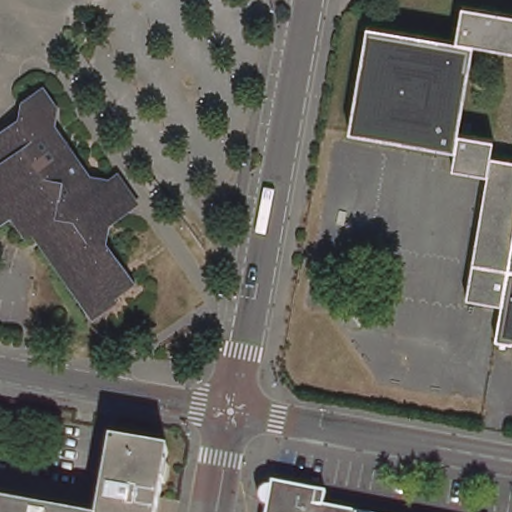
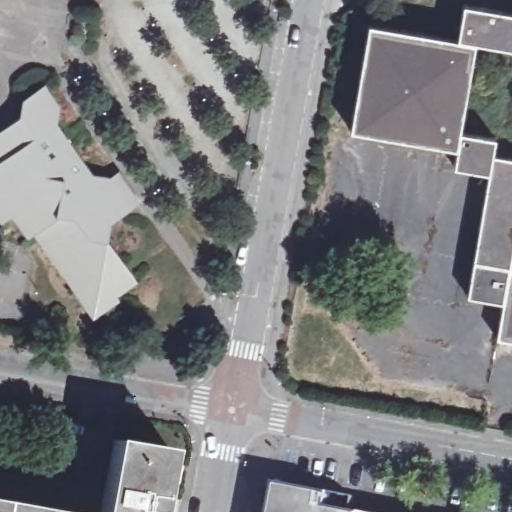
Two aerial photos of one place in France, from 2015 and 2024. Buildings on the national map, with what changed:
unchanged [(371,26),(457,39),(466,5),(512,12),(512,49),(475,44),(461,132),(496,138),(492,155),(509,158),(512,159),(512,340),(499,338),(504,303),(471,296),(487,199),(491,174),(455,168),(457,149),(352,129),(371,26)]
unchanged [(62,125),(97,178),(107,179),(105,203),(112,213),(108,216),(116,228),(112,243),(141,286),(121,300),(122,304),(97,321),(39,236),(34,240),(19,217),(7,225),(0,214),(0,133),(22,118),(26,102),(49,86),(64,107),(62,125)]
unchanged [(115,457),(117,441),(172,452),(170,468),(167,482),(161,512),(104,512),(112,471),(115,457)]
unchanged [(322,496),(320,506),(355,512),(272,512),(277,488),(278,483),(322,492),(322,496)]
unchanged [(0,512),(0,499),(69,512),(0,512)]

